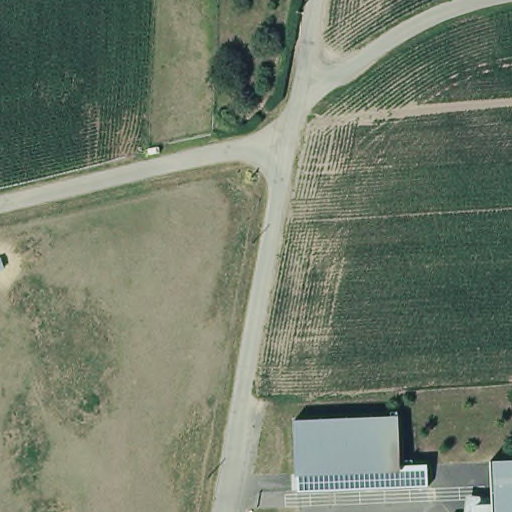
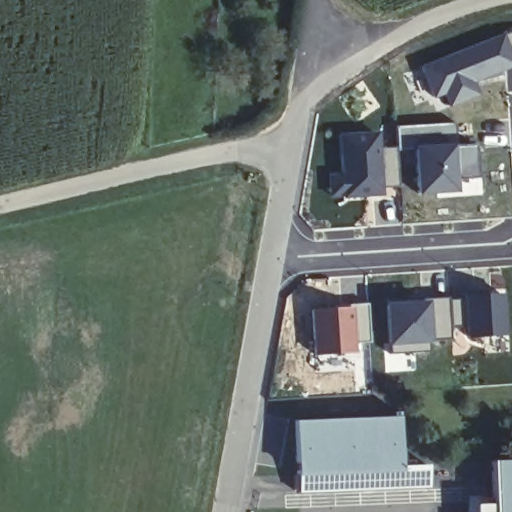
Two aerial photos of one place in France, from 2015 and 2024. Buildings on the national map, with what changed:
new [(502,33),(512,33),(512,92),(507,92),(507,71),(474,84),(479,95),(450,108),(443,97),(433,99),(420,69),(502,33)]
new [(415,147),(395,149),(395,126),(453,124),(454,147),(473,147),(474,179),(455,179),(455,194),(415,195),(415,147)]
new [(385,197),(344,200),(345,198),(330,198),(330,174),(340,174),(338,134),(379,132),(385,197)]
new [(469,338),(465,295),(500,292),(504,335),(469,338)]
new [(422,305),(421,300),(449,298),(449,339),(428,340),(427,347),(388,346),(385,306),(422,305)]
new [(349,307),(349,305),(367,305),(371,343),(355,343),(356,353),(314,356),(312,310),(349,307)]
unchanged [(389,412),(389,408),(390,408),(393,462),(393,466),(289,471),(287,417),(389,412)]
unchanged [(393,466),(393,462),(420,462),(420,482),(290,488),(289,471),(393,466)]
unchanged [(490,505),(489,468),(512,467),(512,512),(468,512),(469,506),(490,505)]

